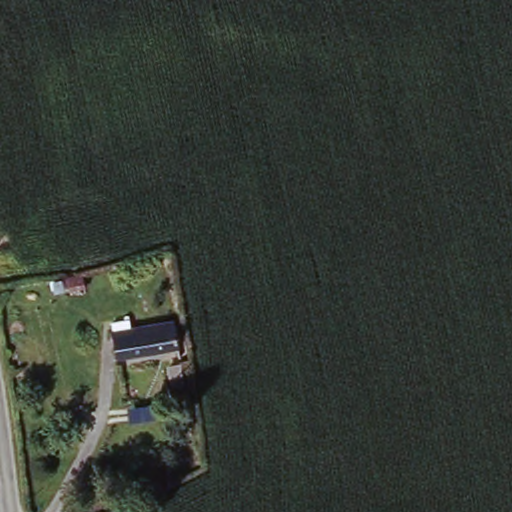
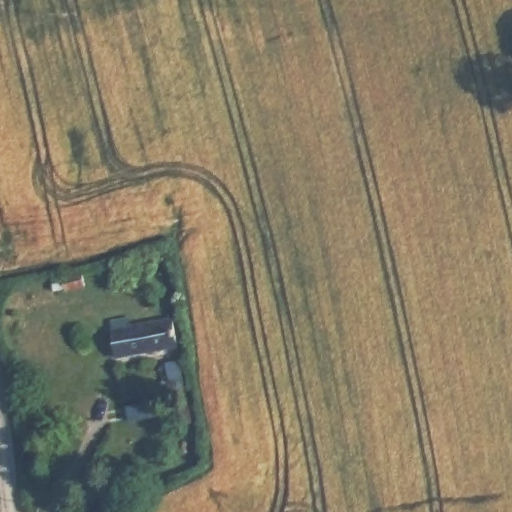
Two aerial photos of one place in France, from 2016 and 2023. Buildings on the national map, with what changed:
unchanged [(120,363),(114,335),(174,326),(178,352),(120,363)]

